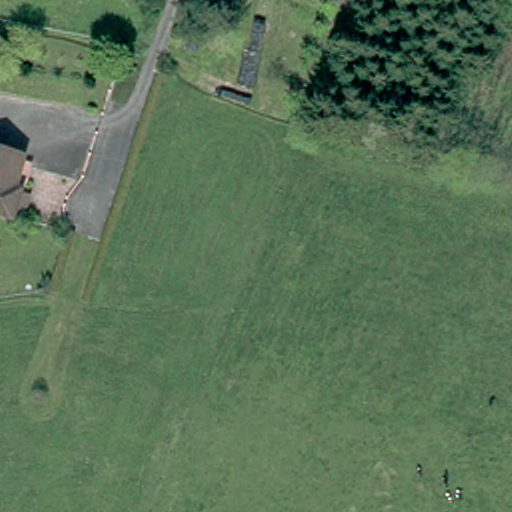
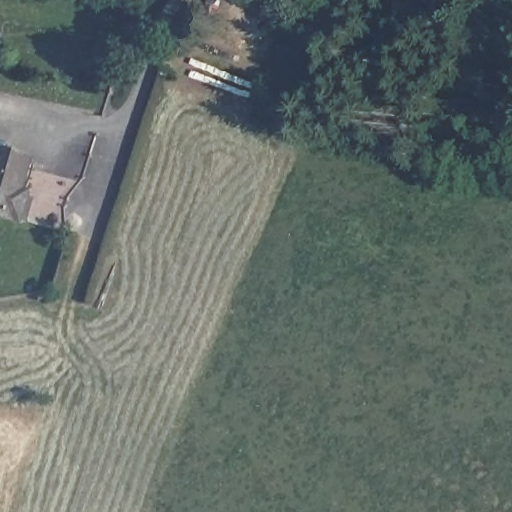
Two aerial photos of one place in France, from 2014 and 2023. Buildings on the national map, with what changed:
unchanged [(10,182),(29,187),(21,216),(0,211),(0,149),(18,154),(10,182)]

